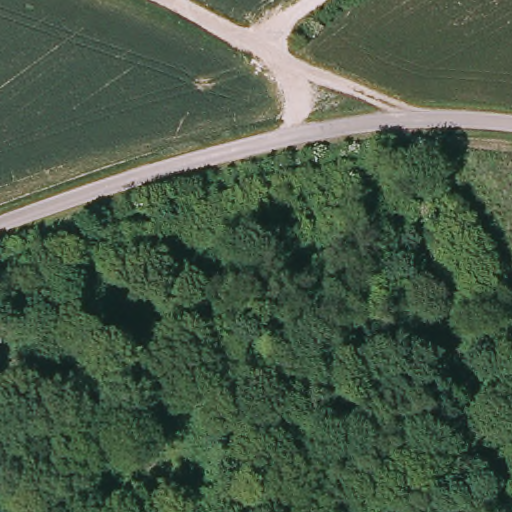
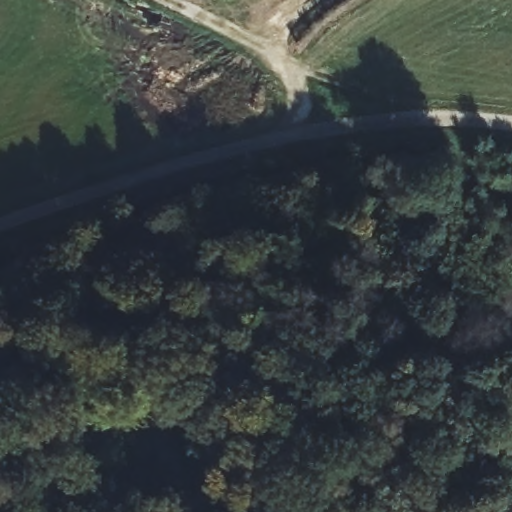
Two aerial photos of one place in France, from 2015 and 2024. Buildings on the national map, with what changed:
unchanged [(202,444),(207,479),(232,474),(232,494),(192,504),(182,449),(202,444)]

